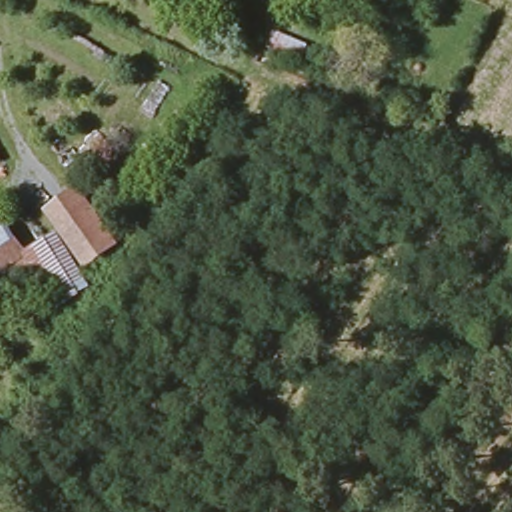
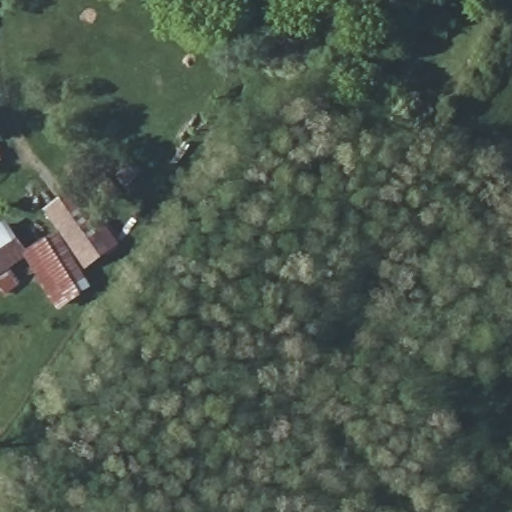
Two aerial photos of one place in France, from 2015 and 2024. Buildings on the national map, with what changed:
unchanged [(1,293),(0,290),(0,230),(13,221),(34,249),(61,233),(49,208),(83,188),(124,244),(90,272),(99,293),(63,313),(43,273),(1,293)]

